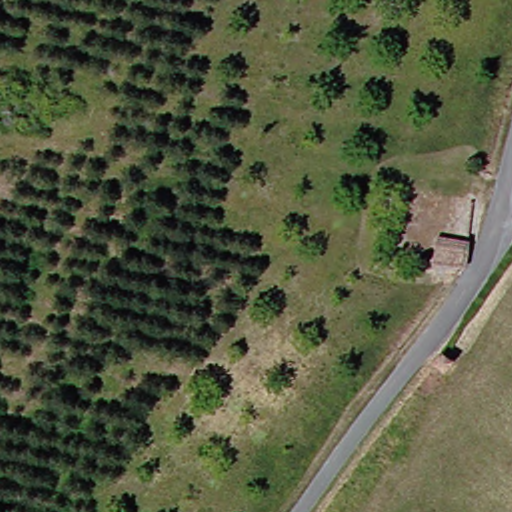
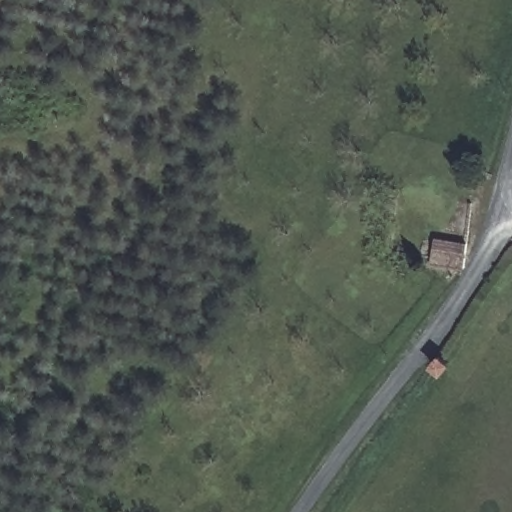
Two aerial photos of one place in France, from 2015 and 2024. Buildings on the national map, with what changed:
unchanged [(458,265),(428,264),(430,240),(465,245),(458,265)]

